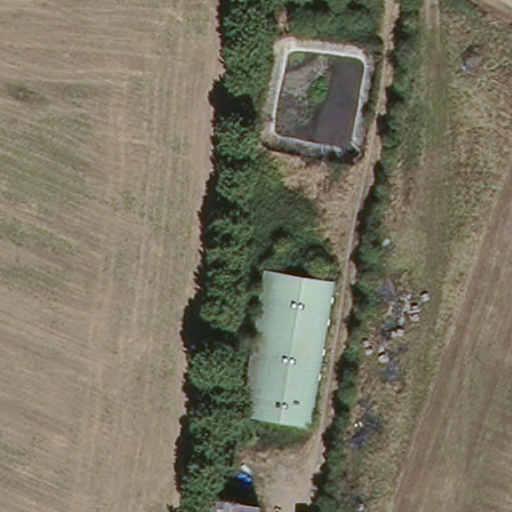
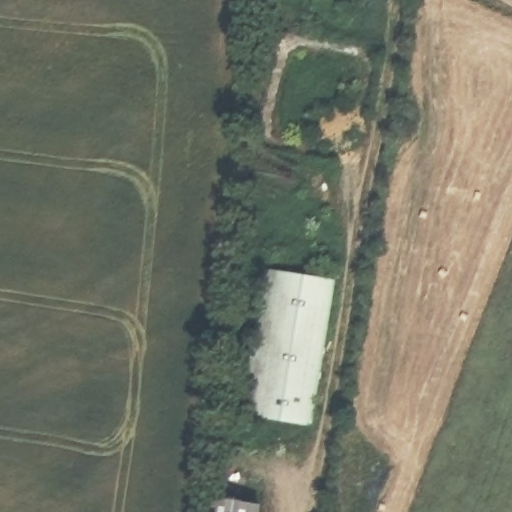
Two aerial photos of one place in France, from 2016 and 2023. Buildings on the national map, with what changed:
unchanged [(232,403),(261,263),(272,265),(242,407),(232,403)]
unchanged [(272,265),(328,277),(302,419),(242,407),(272,265)]
unchanged [(210,494),(261,502),(259,512),(207,512),(210,494)]

